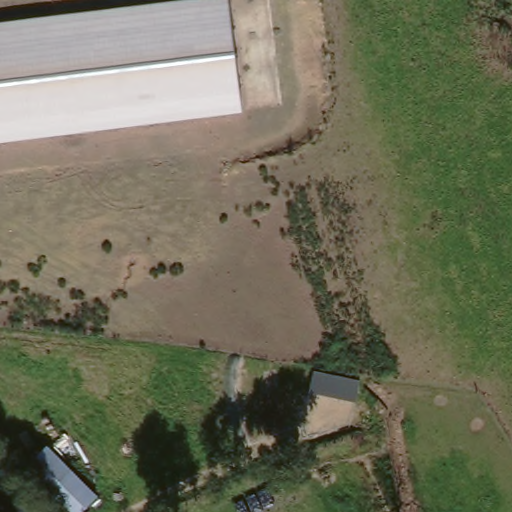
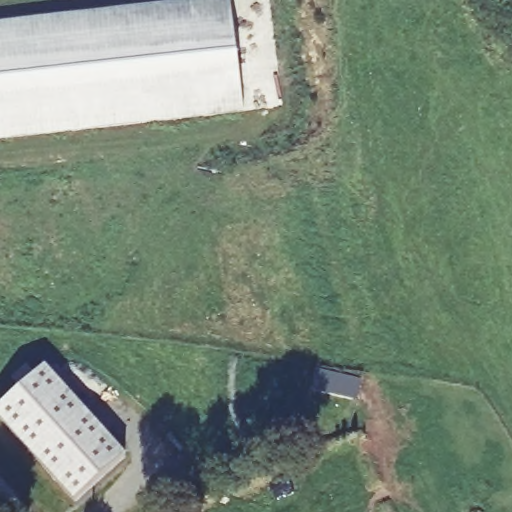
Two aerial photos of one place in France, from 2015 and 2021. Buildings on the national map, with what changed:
unchanged [(0,141),(0,22),(177,0),(229,0),(243,111),(0,141)]
new [(0,407),(46,366),(126,455),(74,501),(0,419),(0,407)]
unchanged [(360,380),(356,400),(311,392),(314,369),(360,380)]
demolished [(98,495),(82,512),(80,512),(41,473),(59,457),(98,495)]

